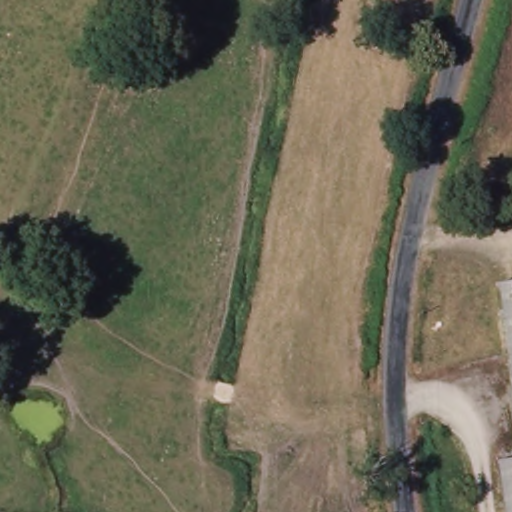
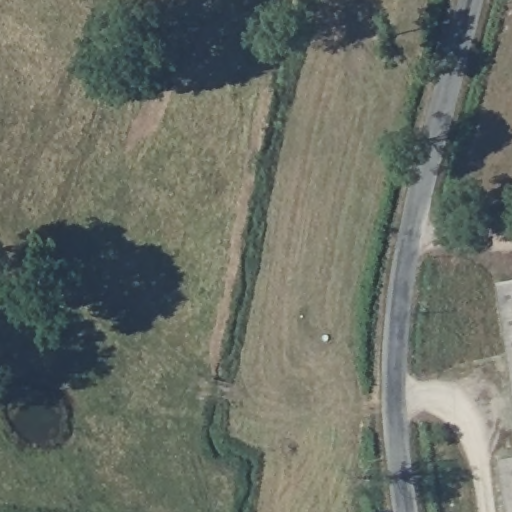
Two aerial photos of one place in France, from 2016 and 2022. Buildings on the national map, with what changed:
unchanged [(499,285),(512,283),(512,373),(499,285)]
unchanged [(506,512),(499,462),(512,460),(512,512),(506,512)]

